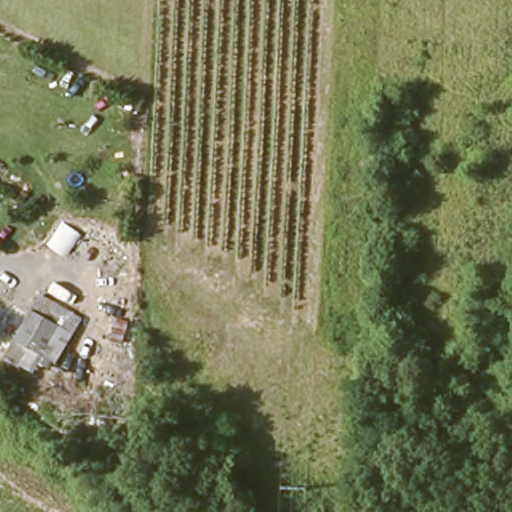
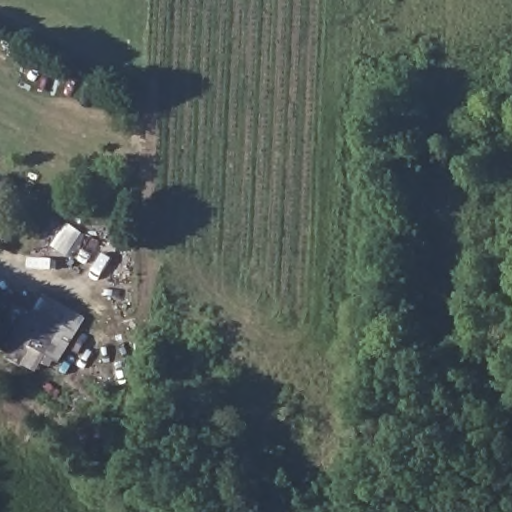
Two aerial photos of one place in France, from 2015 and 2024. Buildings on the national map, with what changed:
unchanged [(62,365),(57,361),(52,370),(34,359),(26,369),(10,357),(21,339),(41,296),(89,319),(62,365)]

